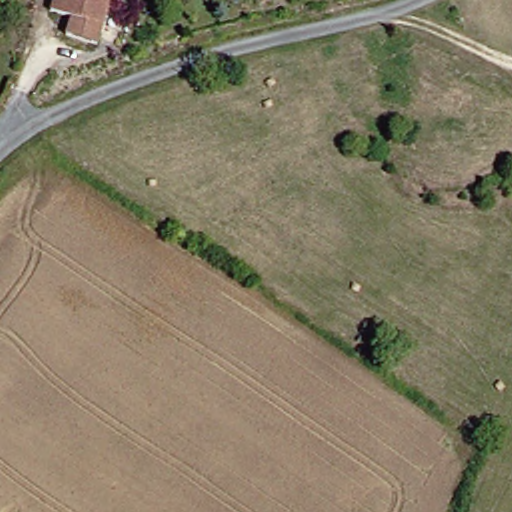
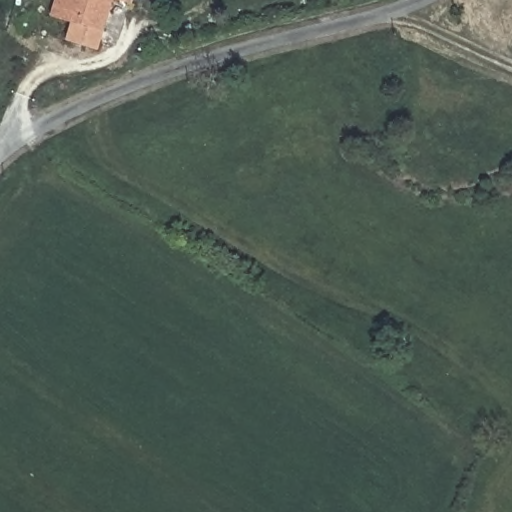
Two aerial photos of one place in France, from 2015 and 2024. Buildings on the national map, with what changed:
unchanged [(145,2),(126,0),(102,50),(74,41),(79,23),(60,17),(65,0),(145,0),(145,2)]

